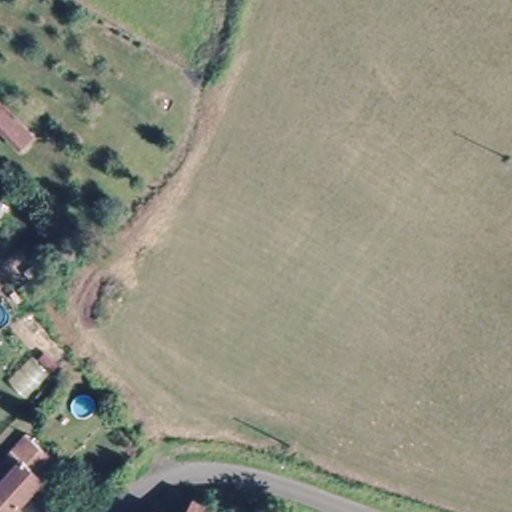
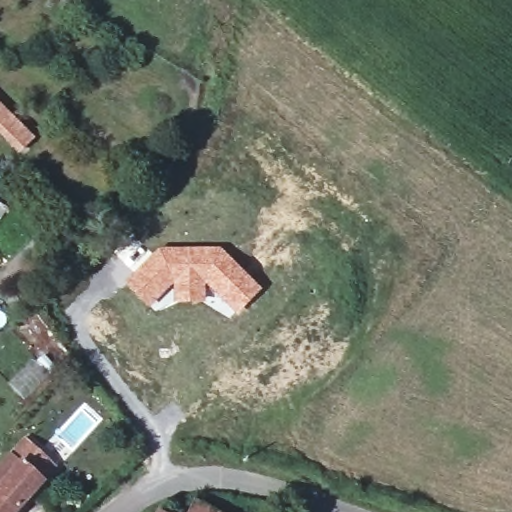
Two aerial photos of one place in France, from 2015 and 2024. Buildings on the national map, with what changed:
unchanged [(0,132),(0,103),(36,138),(21,152),(0,132)]
new [(157,249),(220,247),(262,290),(235,316),(207,288),(203,302),(174,301),(171,287),(147,307),(123,282),(157,249)]
unchanged [(41,482),(13,512),(0,512),(0,460),(9,450),(41,482)]
unchanged [(206,512),(175,512),(180,501),(206,512)]

